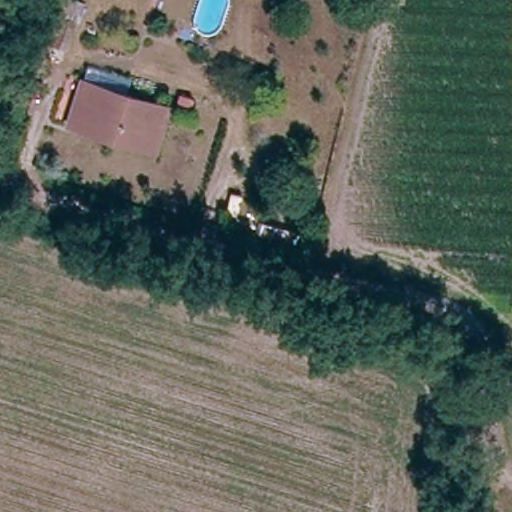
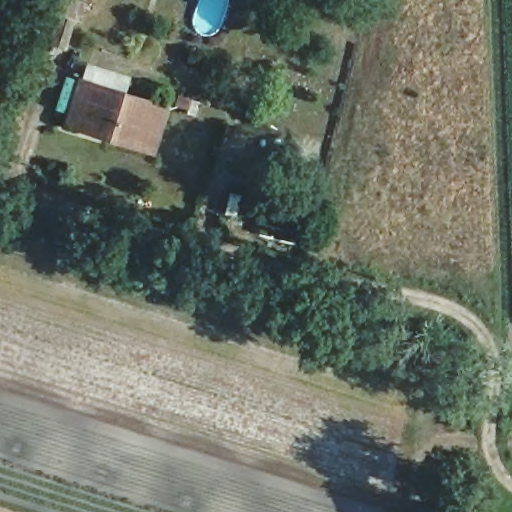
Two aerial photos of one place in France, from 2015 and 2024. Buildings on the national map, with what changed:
unchanged [(155,154),(66,125),(81,84),(167,112),(155,154)]

